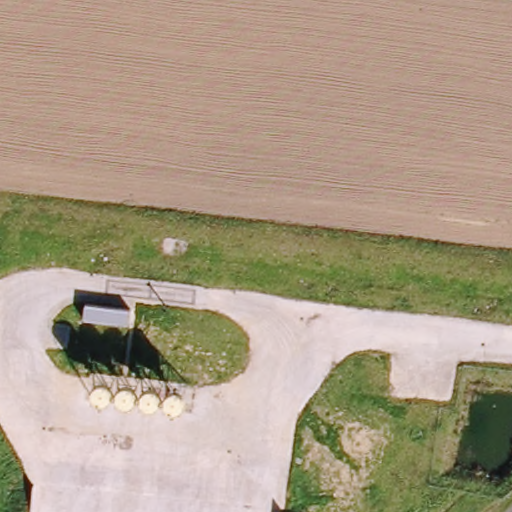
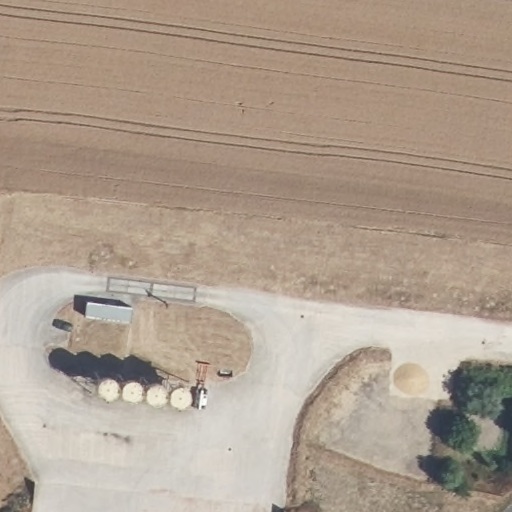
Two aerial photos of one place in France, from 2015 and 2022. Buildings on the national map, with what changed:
unchanged [(134,311),(132,326),(86,322),(88,306),(134,311)]
unchanged [(79,387),(80,386),(82,385),(83,385),(84,385),(85,384),(87,385),(88,385),(89,385),(90,386),(91,386),(92,387),(93,388),(94,388),(94,389),(95,390),(95,391),(95,392),(95,393),(95,394),(95,395),(95,396),(95,397),(95,398),(94,399),(94,400),(94,401),(93,401),(92,402),(91,403),(90,403),(89,404),(88,404),(87,404),(87,405),(86,405),(85,405),(84,405),(83,405),(82,404),(81,403),(80,403),(80,402),(79,402),(78,402),(77,402),(77,401),(77,400),(76,399),(75,397),(75,396),(75,395),(75,393),(75,392),(75,391),(76,390),(77,389),(77,388),(77,387),(78,387),(79,387)]
unchanged [(100,393),(100,392),(101,391),(102,391),(102,390),(103,389),(104,388),(105,388),(105,387),(106,387),(107,387),(109,387),(110,387),(111,387),(112,387),(113,387),(115,388),(115,389),(116,390),(117,390),(117,391),(118,392),(119,392),(119,393),(119,395),(120,395),(120,396),(120,397),(120,398),(119,400),(119,401),(118,402),(117,403),(117,404),(116,405),(115,405),(115,406),(114,406),(113,407),(112,407),(111,407),(110,407),(109,407),(108,407),(107,407),(106,407),(105,407),(104,406),(102,405),(102,404),(101,403),(100,402),(100,401),(100,400),(99,399),(99,398),(99,397),(99,396),(99,395),(100,394),(100,393)]
unchanged [(128,391),(129,391),(130,390),(131,390),(132,390),(134,390),(135,390),(136,390),(137,391),(138,391),(139,392),(140,392),(140,393),(142,394),(142,395),(142,397),(143,397),(143,398),(143,399),(143,401),(143,402),(142,402),(142,403),(142,404),(142,405),(142,406),(141,406),(140,407),(139,408),(138,408),(137,409),(137,410),(136,410),(135,410),(134,410),(133,410),(132,410),(131,410),(130,410),(129,409),(128,409),(127,408),(126,407),(125,407),(125,406),(124,405),(124,404),(123,403),(123,402),(122,401),(122,399),(122,398),(123,397),(124,396),(124,395),(125,395),(125,393),(125,392),(126,392),(127,392),(128,391)]
unchanged [(154,393),(154,392),(155,392),(157,392),(159,392),(159,393),(160,393),(162,394),(163,395),(164,395),(164,396),(165,396),(165,397),(165,398),(167,399),(167,400),(167,401),(167,402),(167,403),(167,404),(167,405),(167,406),(166,406),(165,407),(165,408),(165,409),(164,410),(163,411),(162,411),(162,412),(161,412),(160,412),(159,412),(158,412),(157,412),(156,412),(155,412),(154,412),(153,412),(152,412),(151,412),(150,411),(150,410),(149,410),(149,409),(148,408),(147,408),(147,407),(147,406),(147,405),(147,404),(147,403),(147,402),(147,401),(147,400),(147,399),(147,397),(148,397),(149,397),(149,396),(150,395),(151,394),(152,393),(153,393),(154,393)]

